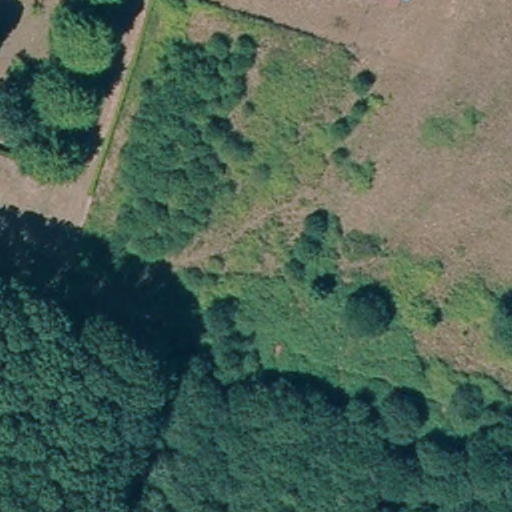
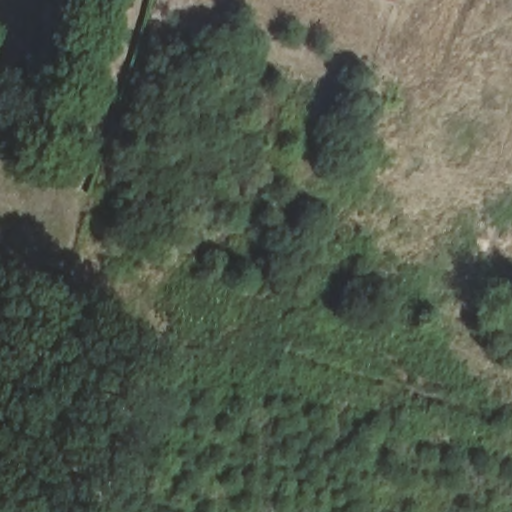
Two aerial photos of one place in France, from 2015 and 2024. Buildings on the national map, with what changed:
unchanged [(386,3),(377,0),(387,0),(386,3)]

